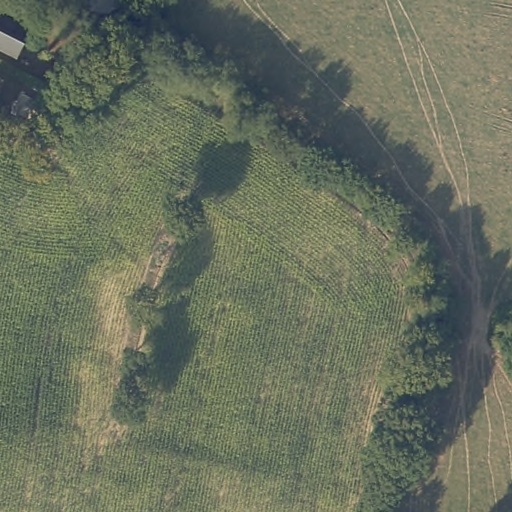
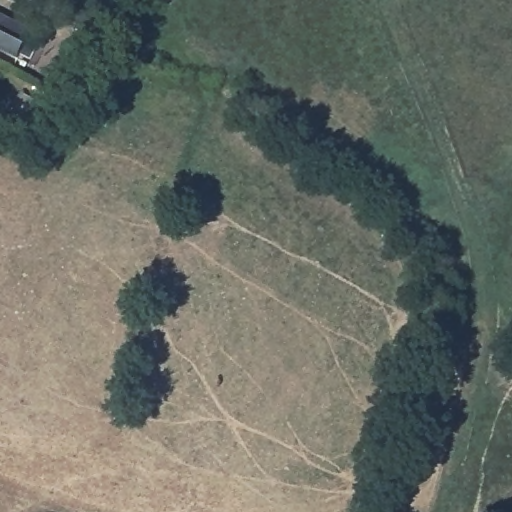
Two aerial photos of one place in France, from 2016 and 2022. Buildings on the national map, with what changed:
unchanged [(24,59),(0,48),(0,12),(17,21),(37,31),(24,59)]

